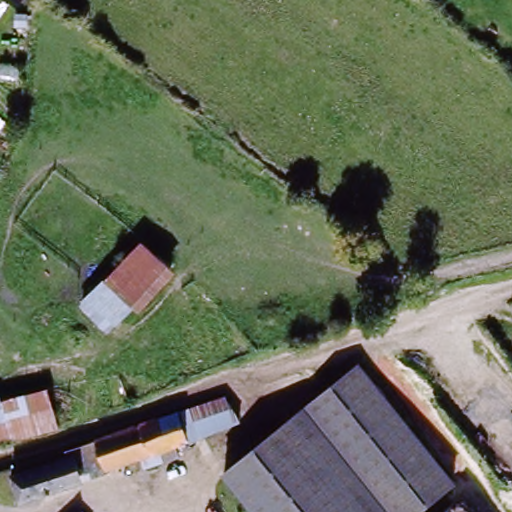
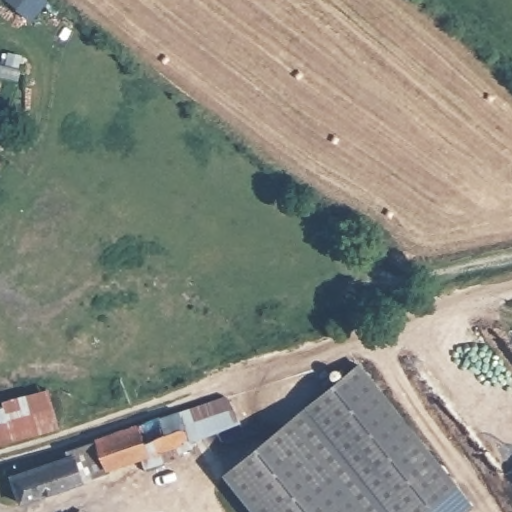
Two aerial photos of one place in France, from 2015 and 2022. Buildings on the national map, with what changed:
unchanged [(21,14),(4,0),(32,0),(21,14)]
demolished [(141,239),(176,274),(140,310),(103,278),(141,239)]
demolished [(103,278),(135,306),(110,333),(81,306),(103,278)]
unchanged [(327,396),(362,371),(452,494),(426,512),(412,512),(395,488),(327,396)]
unchanged [(46,387),(58,428),(40,433),(30,432),(24,410),(4,416),(0,417),(0,400),(46,387)]
unchanged [(247,452),(327,396),(395,488),(412,512),(291,512),(265,476),(247,452)]
unchanged [(5,471),(60,452),(92,442),(221,400),(237,417),(172,441),(176,451),(139,465),(135,454),(101,466),(102,470),(71,480),(72,483),(17,502),(5,471)]
unchanged [(0,441),(0,417),(4,416),(24,410),(30,432),(0,441)]
unchanged [(247,452),(265,476),(291,512),(251,512),(221,470),(247,452)]
unchanged [(81,512),(77,512),(79,510),(81,512)]

